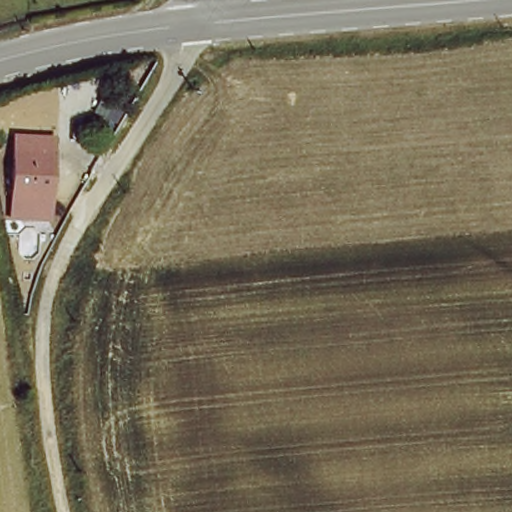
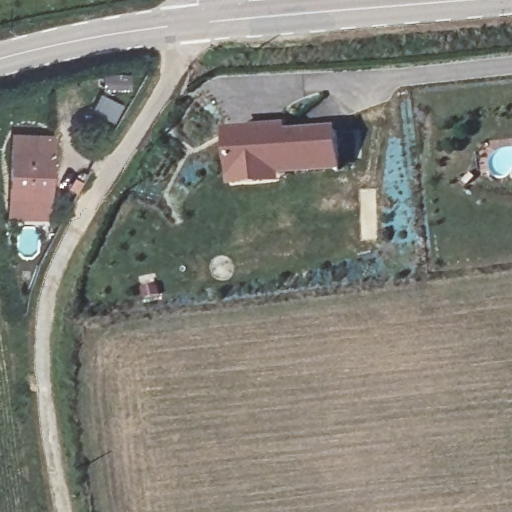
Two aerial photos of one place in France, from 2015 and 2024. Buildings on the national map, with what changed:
demolished [(205,0),(223,0),(223,4),(205,5),(205,0)]
new [(288,125),(288,131),(337,129),(340,170),(280,175),(280,184),(229,187),(226,129),(288,125)]
unchanged [(51,204),(10,201),(13,145),(15,145),(16,135),(49,136),(49,146),(52,146),(51,204)]

